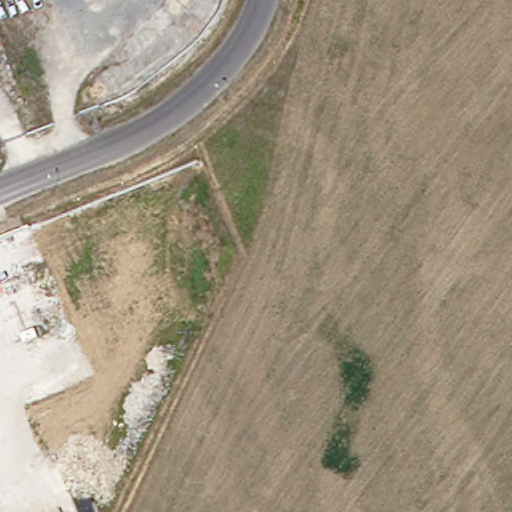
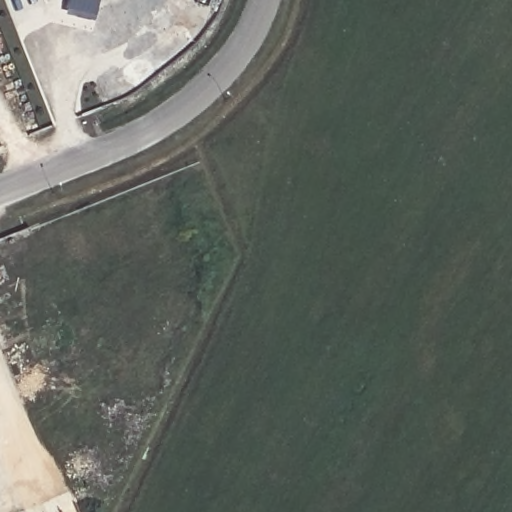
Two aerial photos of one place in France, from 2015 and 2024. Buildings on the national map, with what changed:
[]

